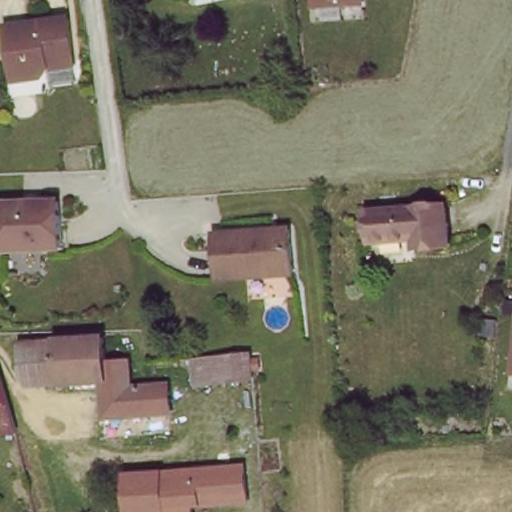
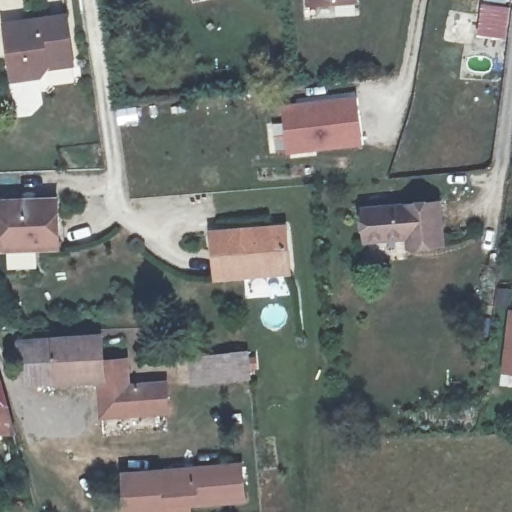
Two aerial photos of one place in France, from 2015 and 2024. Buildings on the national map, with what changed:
unchanged [(348,2),(308,5),(308,0),(354,0),(354,1),(348,2)]
unchanged [(50,69),(43,77),(15,81),(14,80),(8,27),(69,19),(74,61),(75,66),(50,69)]
new [(356,101),(362,144),(291,153),(286,110),(356,101)]
unchanged [(50,248),(0,250),(0,202),(49,200),(50,248)]
unchanged [(409,207),(441,204),(445,244),(413,247),(412,239),(369,242),(366,212),(409,207)]
unchanged [(272,230),(276,275),(223,278),(220,233),(272,230)]
unchanged [(501,375),(509,310),(512,310),(512,376),(501,375)]
unchanged [(166,412),(154,413),(101,417),(98,381),(74,382),(73,375),(21,377),(17,342),(101,337),(103,362),(124,361),(126,388),(153,386),(164,386),(166,412)]
unchanged [(191,357),(201,357),(204,357),(223,355),(248,353),(250,377),(226,378),(206,380),(193,381),(191,357)]
unchanged [(6,402),(14,427),(0,427),(0,381),(3,390),(6,402)]
unchanged [(120,473),(248,462),(253,503),(194,509),(195,512),(124,512),(120,473)]

